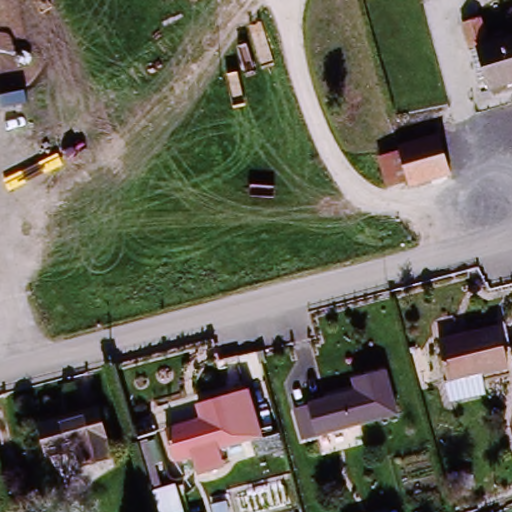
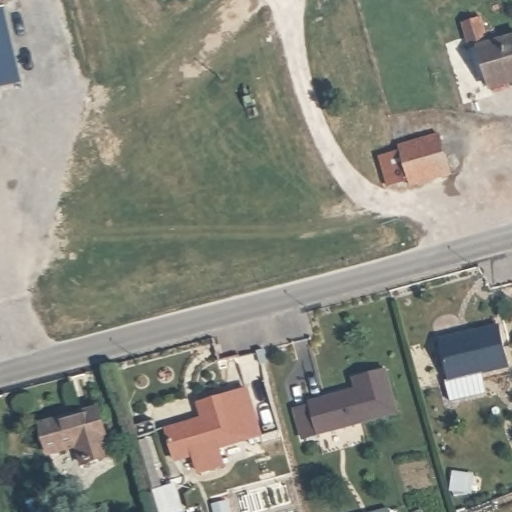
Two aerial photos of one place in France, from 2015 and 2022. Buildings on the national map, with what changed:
unchanged [(490,19),(493,33),(510,28),(512,34),(512,84),(500,87),(496,75),(490,77),(482,49),(475,24),(490,19)]
unchanged [(22,77),(23,89),(0,93),(0,81),(22,77)]
unchanged [(400,151),(442,137),(455,173),(412,187),(400,151)]
unchanged [(510,368),(452,382),(442,342),(500,328),(510,368)]
unchanged [(308,409),(310,407),(357,394),(354,383),(385,374),(397,417),(317,440),(303,444),(295,413),(308,409)]
unchanged [(172,426),(198,419),(200,424),(209,421),(205,404),(236,397),(255,392),(265,436),(247,440),(179,458),(172,426)]
unchanged [(87,465),(82,446),(52,453),(45,424),(102,410),(114,458),(87,465)]
unchanged [(148,495),(175,487),(182,512),(153,512),(148,495)]
unchanged [(388,512),(379,512),(387,509),(388,512)]

